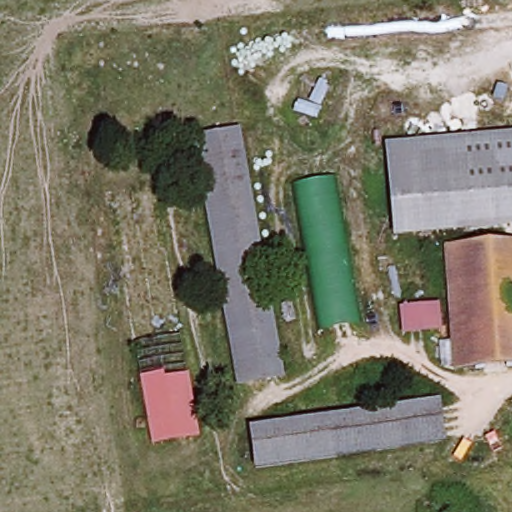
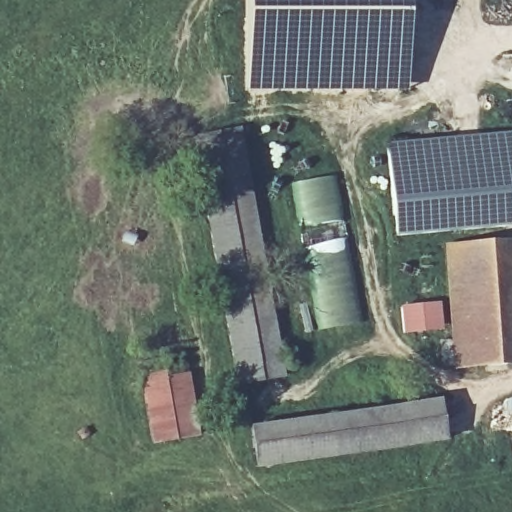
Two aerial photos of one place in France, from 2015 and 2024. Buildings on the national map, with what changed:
new [(407,0),(407,90),(353,92),(242,92),(241,62),(244,0),(407,0)]
unchanged [(375,141),(512,131),(512,220),(382,230),(375,141)]
unchanged [(241,132),(270,375),(227,381),(199,136),(241,132)]
unchanged [(357,325),(320,332),(290,185),(332,175),(357,325)]
unchanged [(450,367),(445,245),(512,241),(512,284),(509,285),(510,364),(450,367)]
unchanged [(405,330),(405,305),(442,303),(443,328),(405,330)]
unchanged [(182,375),(189,434),(146,440),(139,375),(182,375)]
unchanged [(251,461),(247,423),(437,409),(438,446),(387,450),(251,461)]

